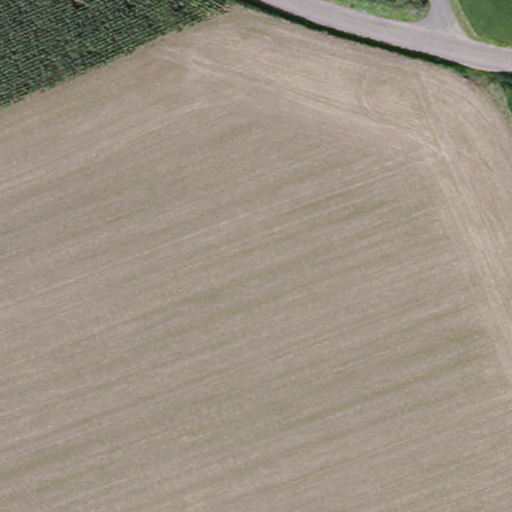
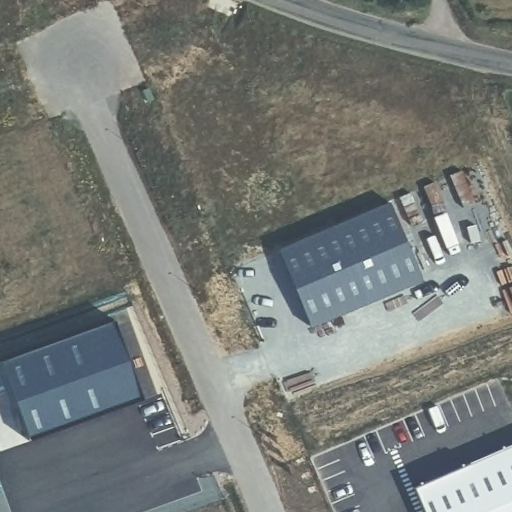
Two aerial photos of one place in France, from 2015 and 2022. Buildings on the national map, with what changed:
new [(390,206),(422,283),(311,330),(279,253),(390,206)]
new [(31,443),(2,363),(115,322),(144,402),(31,443)]
new [(512,447),(512,512),(422,512),(412,490),(512,447)]

